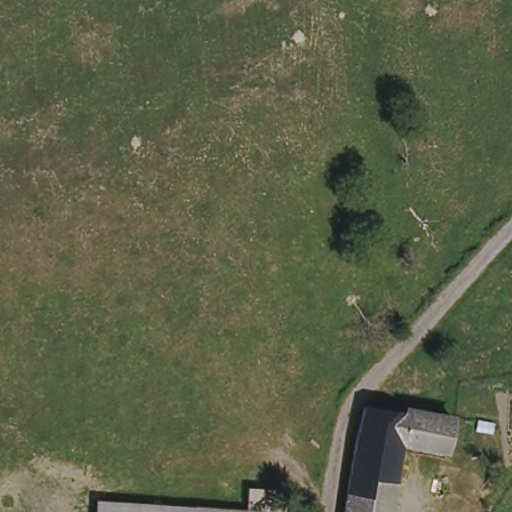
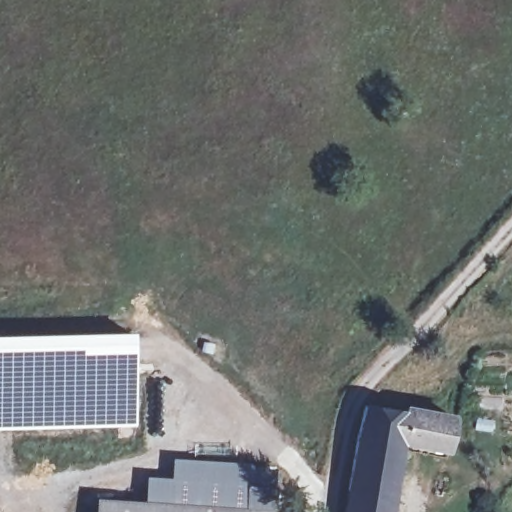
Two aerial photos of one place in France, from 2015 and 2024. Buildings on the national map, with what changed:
new [(135,332),(137,426),(0,430),(0,336),(135,332)]
unchanged [(368,405),(454,413),(450,447),(403,441),(390,512),(347,512),(368,405)]
unchanged [(98,500),(251,505),(251,485),(285,485),(283,512),(98,512),(98,500)]
demolished [(457,497),(473,487),(486,510),(483,512),(466,512),(457,497)]

